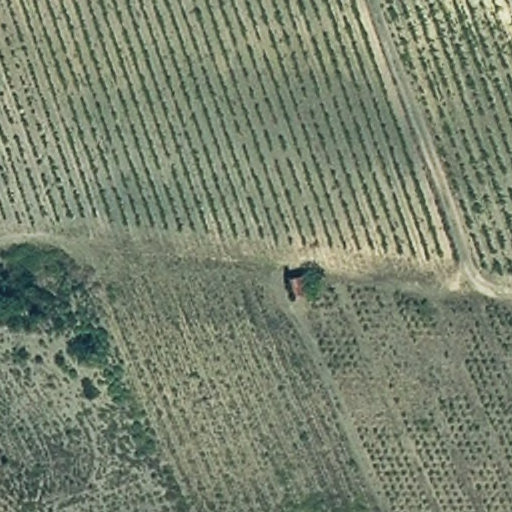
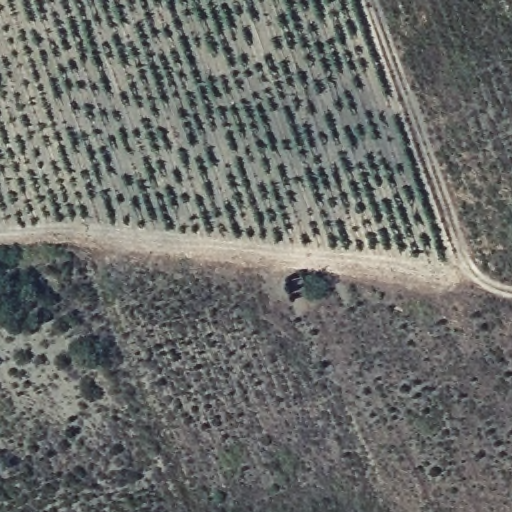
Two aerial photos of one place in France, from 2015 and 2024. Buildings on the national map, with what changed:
unchanged [(303,273),(308,293),(294,296),(286,277),(303,273)]

